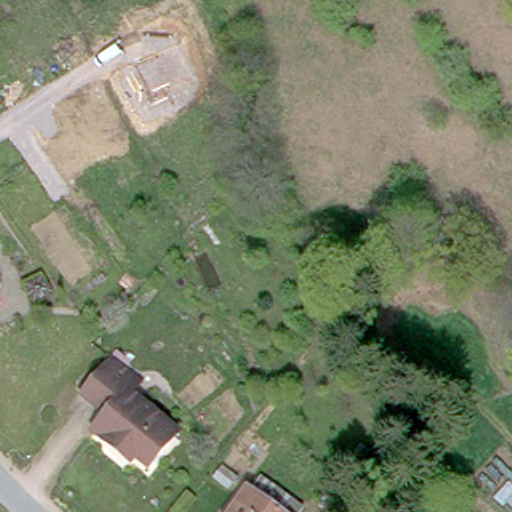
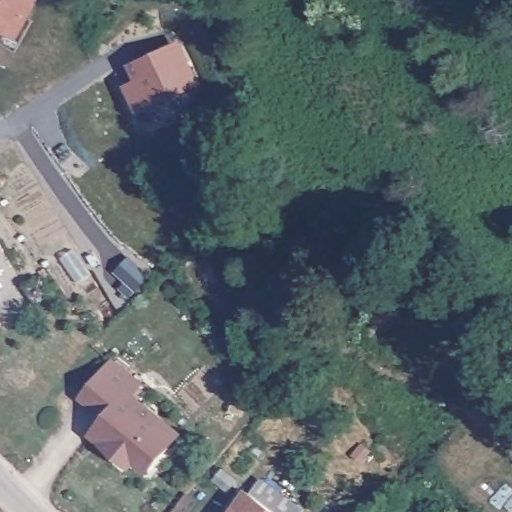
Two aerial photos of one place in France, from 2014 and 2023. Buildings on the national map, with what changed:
new [(11,33),(0,28),(0,0),(28,0),(11,33)]
new [(125,85),(136,79),(129,63),(181,39),(203,86),(140,114),(125,85)]
new [(127,259),(147,277),(135,291),(114,272),(127,259)]
unchanged [(110,355),(144,382),(138,393),(184,431),(151,472),(83,432),(101,414),(75,397),(110,355)]
unchanged [(233,512),(248,491),(252,492),(261,480),(301,510),(299,512),(233,512)]

